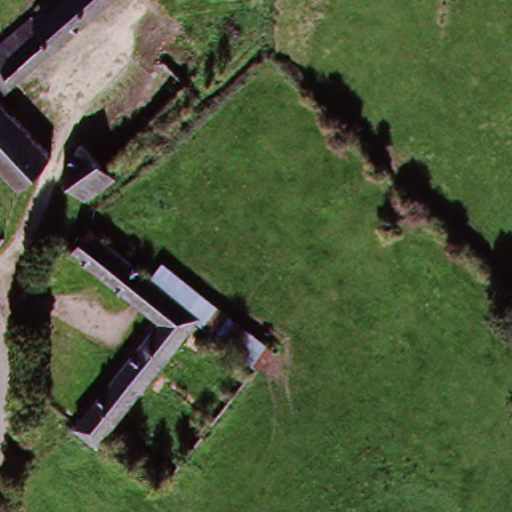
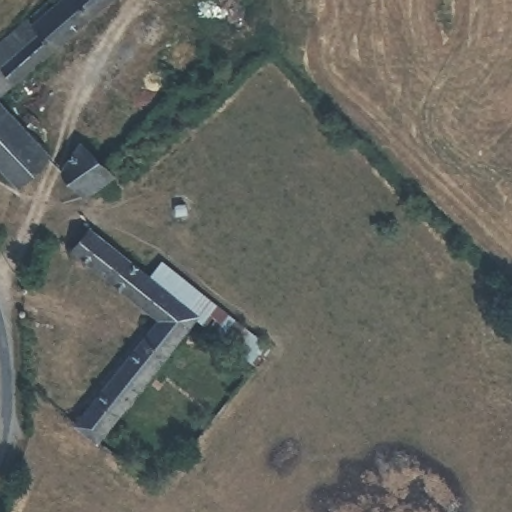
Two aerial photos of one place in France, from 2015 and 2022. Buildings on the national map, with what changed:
unchanged [(44,8),(49,15),(65,0),(126,0),(60,62),(50,70),(20,98),(0,75),(0,47),(44,8)]
unchanged [(20,98),(0,115),(0,75),(20,98)]
unchanged [(45,163),(15,192),(0,175),(0,115),(45,163)]
unchanged [(58,174),(82,148),(105,170),(112,178),(103,189),(82,197),(58,174)]
unchanged [(128,299),(70,250),(89,228),(147,278),(128,299)]
unchanged [(163,292),(147,278),(159,263),(211,306),(199,321),(163,292)]
unchanged [(70,431),(159,325),(145,313),(163,292),(199,321),(92,449),(70,431)]
unchanged [(265,352),(254,366),(199,321),(211,306),(265,352)]

